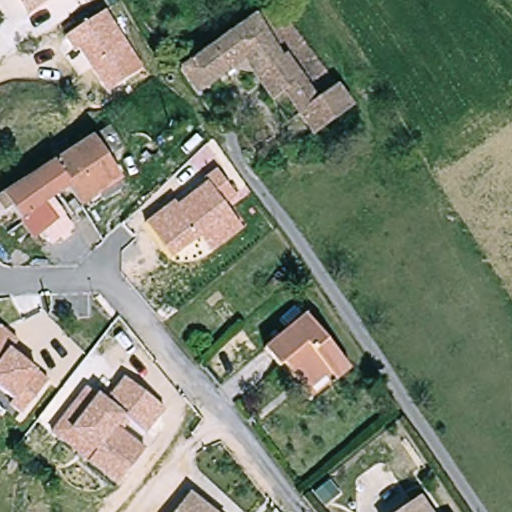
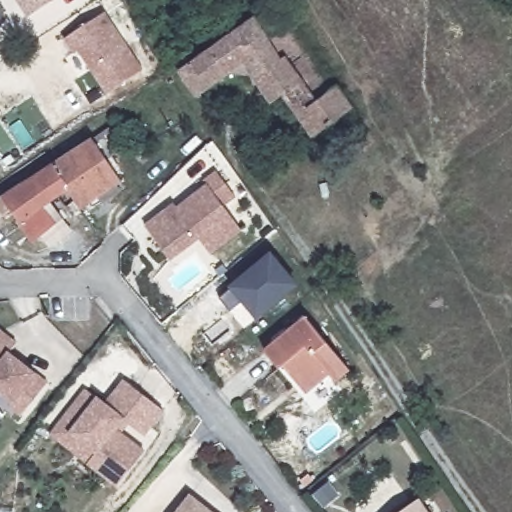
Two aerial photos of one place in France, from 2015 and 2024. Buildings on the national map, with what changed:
unchanged [(16,0),(52,0),(27,17),(16,0)]
unchanged [(354,109),(316,137),(286,94),(276,101),(248,62),(201,97),(183,71),(241,31),(278,2),(354,109)]
unchanged [(108,94),(80,52),(73,57),(63,40),(105,11),(143,71),(108,94)]
unchanged [(106,200),(101,192),(83,203),(83,204),(71,186),(54,197),(38,172),(56,161),(113,123),(126,145),(109,156),(123,177),(119,180),(124,187),(106,200)]
unchanged [(264,160),(259,164),(253,157),(259,153),(264,160)]
unchanged [(178,207),(205,186),(201,182),(216,170),(236,197),(223,206),(242,232),(213,254),(200,240),(171,259),(146,223),(173,202),(178,207)]
unchanged [(54,197),(46,202),(65,226),(51,237),(45,229),(35,236),(24,222),(9,232),(1,222),(0,223),(0,196),(38,172),(54,197)]
new [(299,286),(257,320),(241,302),(231,311),(219,297),(231,288),(228,286),(272,250),(299,286)]
demolished [(44,316),(21,337),(4,319),(27,298),(44,316)]
unchanged [(352,370),(337,382),(331,375),(309,393),(285,365),(281,368),(267,351),(309,317),(352,370)]
unchanged [(28,365),(29,363),(48,377),(22,413),(10,402),(0,394),(0,329),(18,342),(13,353),(28,365)]
unchanged [(104,406),(124,382),(162,412),(143,437),(131,428),(123,438),(144,455),(116,489),(104,480),(113,468),(70,433),(97,400),(104,406)]
unchanged [(97,400),(70,433),(113,468),(104,480),(49,436),(85,391),(97,400)]
unchanged [(311,492),(326,480),(336,492),(321,504),(311,492)]
unchanged [(191,493),(214,512),(175,512),(191,493)]
unchanged [(419,497),(430,512),(398,512),(419,497)]

